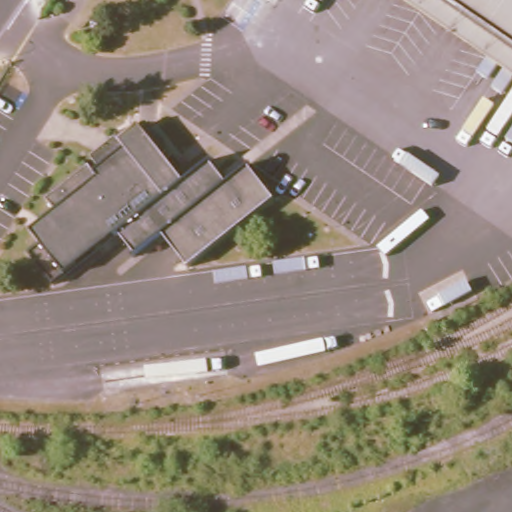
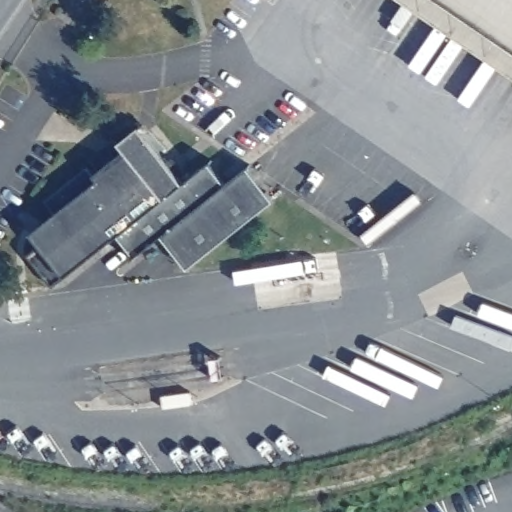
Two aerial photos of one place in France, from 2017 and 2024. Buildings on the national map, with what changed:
unchanged [(512,47),(512,69),(507,75),(403,0),(448,0),(512,47)]
unchanged [(448,0),(512,0),(512,47),(448,0)]
unchanged [(512,69),(512,79),(507,75),(512,69)]
unchanged [(211,162),(229,183),(250,165),(278,198),(195,270),(168,237),(144,258),(126,237),(63,291),(37,260),(60,240),(50,228),(63,217),(53,205),(94,170),(100,176),(105,172),(95,160),(119,140),(123,145),(143,127),(187,184),(211,162)]

